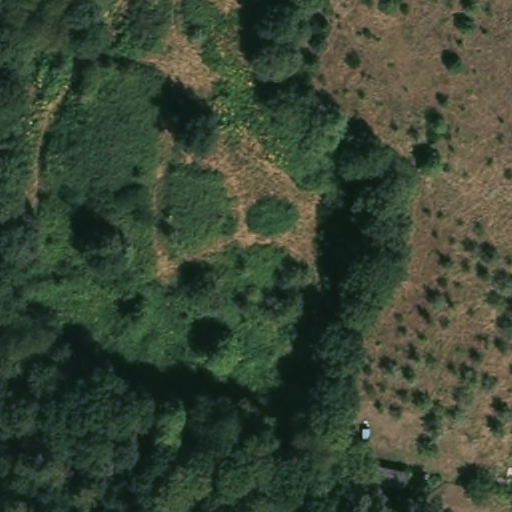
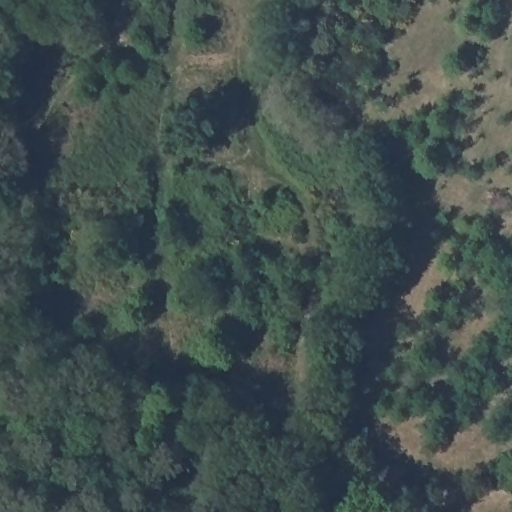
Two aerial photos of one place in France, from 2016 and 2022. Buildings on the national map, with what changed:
unchanged [(400,497),(367,491),(370,471),(403,476),(400,497)]

